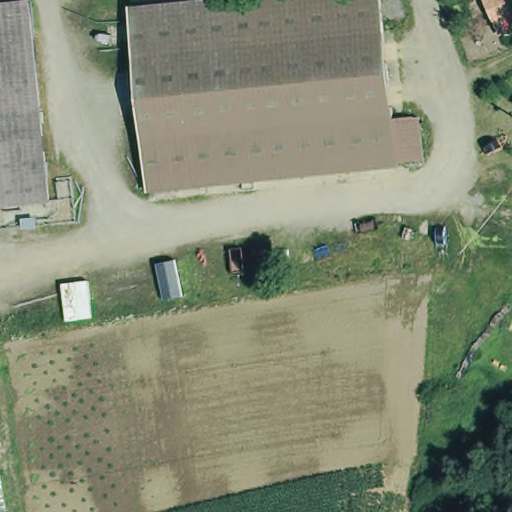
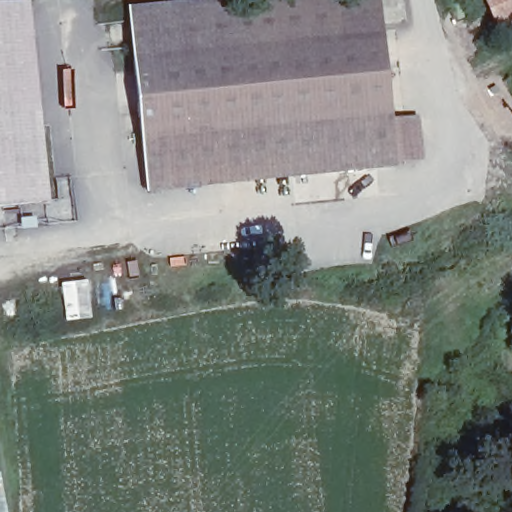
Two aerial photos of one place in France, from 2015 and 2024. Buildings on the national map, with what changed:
unchanged [(63,203),(0,210),(0,4),(41,0),(63,203)]
unchanged [(150,202),(131,8),(210,0),(388,0),(398,117),(428,115),(428,169),(150,202)]
unchanged [(484,0),(512,0),(512,19),(494,26),(484,0)]
unchanged [(9,512),(0,512),(0,473),(1,473),(9,512)]

